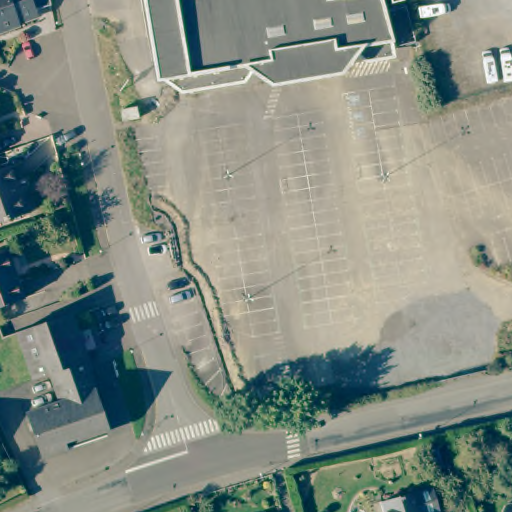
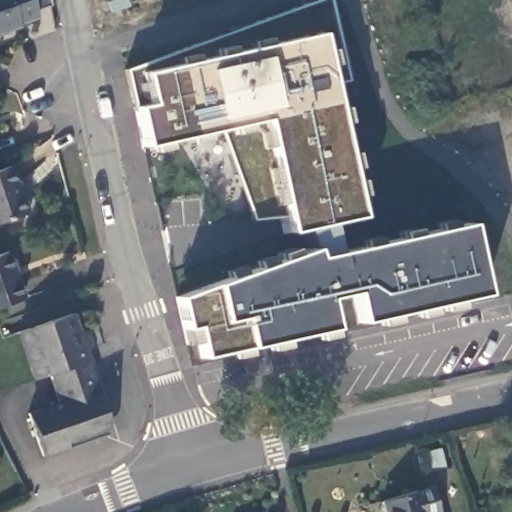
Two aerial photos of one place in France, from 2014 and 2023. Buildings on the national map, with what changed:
unchanged [(37,20),(19,26),(21,30),(0,37),(0,0),(31,0),(37,20)]
new [(31,0),(50,0),(51,7),(34,12),(31,0)]
new [(329,88),(358,216),(331,222),(340,252),(466,223),(482,293),(359,322),(353,292),(323,298),(331,329),(245,349),(202,359),(195,329),(184,331),(176,297),(213,286),(310,250),(301,230),(286,232),(282,218),(251,222),(219,128),(143,147),(131,107),(147,104),(139,72),(317,0),(330,0),(348,83),(329,88)]
demolished [(376,14),(383,12),(392,43),(331,53),(330,55),(329,56),(328,57),(326,59),(324,61),(324,62),(323,62),(322,64),(320,65),(319,66),(318,66),(317,67),(314,69),(313,69),(311,70),(310,70),(307,71),(305,72),(303,72),(302,72),(300,73),(299,73),(297,73),(296,73),(294,73),(291,73),(289,73),(289,72),(286,72),(285,72),(283,71),(280,70),(277,69),(276,68),(274,67),(272,66),(271,65),(270,64),(269,63),(156,83),(142,0),(374,0),(376,14)]
demolished [(116,112),(119,111),(137,107),(139,120),(121,124),(119,124),(116,112)]
unchanged [(8,169),(18,196),(21,195),(27,216),(0,225),(0,172),(8,169)]
unchanged [(5,254),(21,301),(0,308),(0,256),(5,254)]
unchanged [(60,385),(51,388),(46,373),(32,377),(26,359),(29,359),(25,347),(23,348),(17,330),(71,312),(77,328),(78,327),(83,340),(81,341),(87,358),(85,359),(90,374),(60,385)]
unchanged [(94,387),(91,388),(101,420),(99,421),(93,432),(93,435),(39,454),(25,412),(56,401),(51,388),(60,385),(90,374),(94,387)]
unchanged [(431,493),(437,512),(382,512),(381,508),(415,498),(431,493)]

